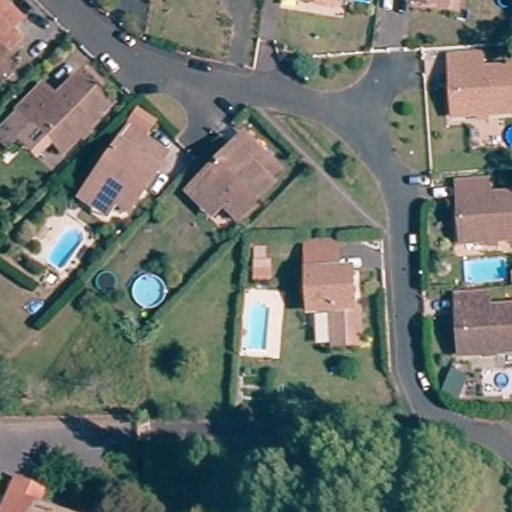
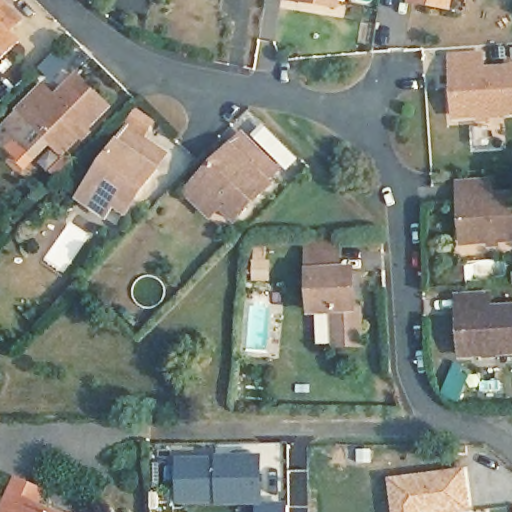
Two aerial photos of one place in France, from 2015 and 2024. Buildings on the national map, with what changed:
unchanged [(306,9),(274,4),(275,0),(332,0),(330,14),(306,9)]
unchanged [(410,5),(410,0),(449,0),(447,11),(410,5)]
unchanged [(1,1),(22,23),(11,34),(20,44),(0,62),(0,2),(1,1)]
unchanged [(451,59),(481,57),(482,77),(512,75),(512,116),(461,119),(454,120),(452,82),(451,59)]
unchanged [(55,144),(32,121),(17,137),(8,146),(0,138),(0,129),(45,84),(57,96),(79,75),(109,106),(69,146),(66,149),(62,152),(55,144)]
unchanged [(140,116),(156,129),(147,140),(131,129),(140,116)]
unchanged [(77,205),(87,190),(111,158),(128,133),(166,160),(161,166),(146,187),(136,202),(125,217),(115,210),(105,224),(77,205)]
unchanged [(230,226),(214,210),(201,223),(178,200),(191,187),(204,175),(238,140),(273,176),(264,185),(262,187),(266,191),(254,203),(242,215),(230,226)]
unchanged [(486,191),(487,205),(512,204),(512,245),(466,247),(459,248),(457,215),(457,192),(486,191)]
unchanged [(356,312),(357,348),(332,348),(331,312),(307,312),(307,262),(307,241),(337,241),(337,262),(337,274),(350,274),(351,312),(356,312)]
unchanged [(254,260),(254,248),(266,247),(266,260),(266,262),(270,262),(270,280),(255,281),(254,260)]
unchanged [(457,298),(485,296),(486,313),(512,311),(512,349),(467,352),(462,353),(459,315),(457,298)]
new [(217,453),(263,453),(265,502),(291,501),(291,512),(259,512),(258,505),(217,505),(217,500),(179,501),(177,456),(217,456),(217,453)]
new [(472,510),(462,512),(394,512),(390,477),(467,467),(472,510)]
unchanged [(32,496),(29,503),(23,500),(18,512),(0,512),(0,501),(7,485),(32,496)]
unchanged [(18,512),(23,500),(29,503),(49,512),(18,512)]

